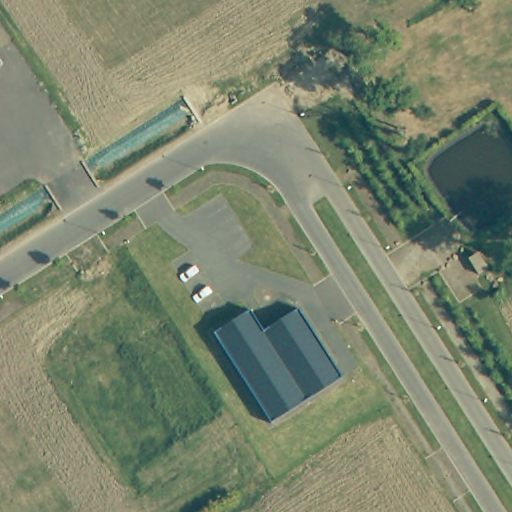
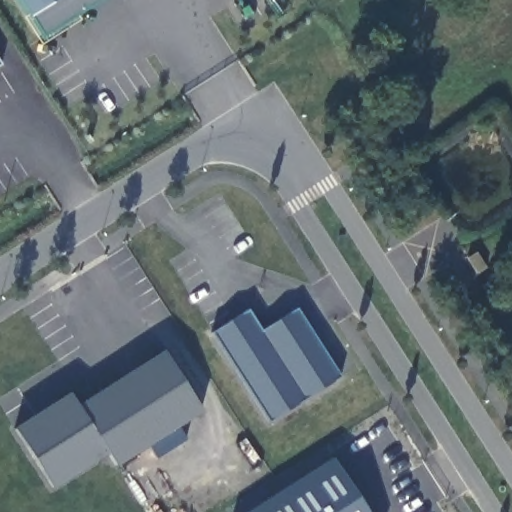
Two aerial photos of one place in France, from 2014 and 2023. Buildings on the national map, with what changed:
new [(30,15),(20,0),(101,0),(43,36),(30,15)]
unchanged [(212,335),(249,312),(262,333),(297,310),(341,379),(270,425),(212,335)]
new [(14,427),(70,392),(77,404),(163,350),(203,411),(178,426),(186,439),(158,457),(150,444),(116,465),(109,453),(54,488),(14,427)]
new [(333,458),(367,512),(249,512),(333,458)]

